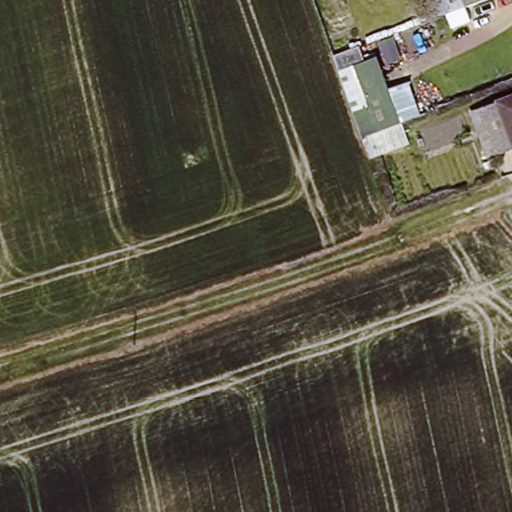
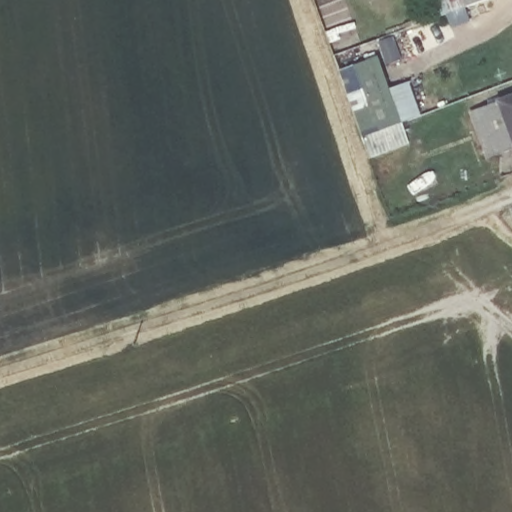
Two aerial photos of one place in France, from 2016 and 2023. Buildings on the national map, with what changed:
unchanged [(465,10),(461,0),(491,0),(492,0),(465,10)]
unchanged [(360,137),(351,112),(367,106),(352,66),(378,57),(400,122),(360,137)]
unchanged [(512,98),(512,150),(485,160),(467,115),(512,98)]
unchanged [(370,165),(360,137),(400,122),(407,120),(417,148),(370,165)]

